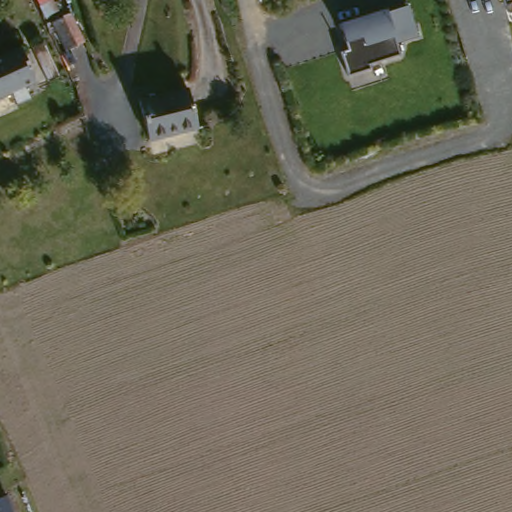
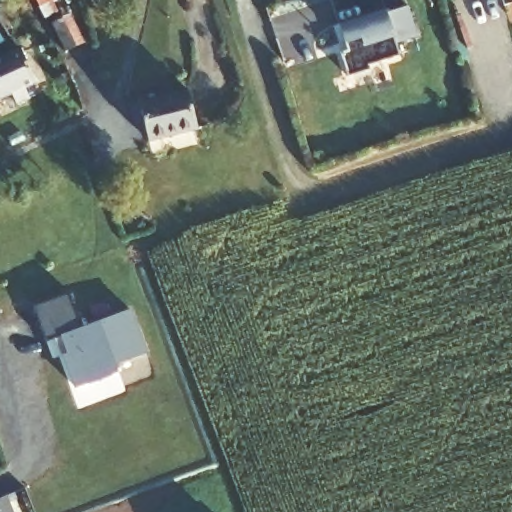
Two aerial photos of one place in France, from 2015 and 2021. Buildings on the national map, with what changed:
unchanged [(512,2),(503,5),(502,0),(512,0),(512,2)]
unchanged [(414,3),(422,40),(401,46),(406,62),(347,77),(341,51),(350,47),(345,24),(414,3)]
unchanged [(65,57),(49,21),(71,12),(87,47),(65,57)]
unchanged [(35,98),(20,106),(15,95),(0,102),(0,61),(25,50),(40,84),(30,89),(35,98)]
unchanged [(149,141),(139,102),(187,90),(197,129),(149,141)]
new [(70,292),(83,327),(130,309),(147,353),(116,365),(120,372),(77,388),(65,355),(69,353),(62,336),(47,342),(34,306),(70,292)]
unchanged [(14,512),(0,512),(0,501),(8,497),(14,512)]

